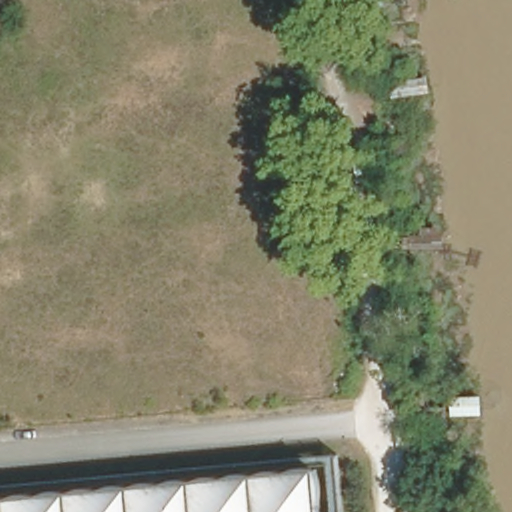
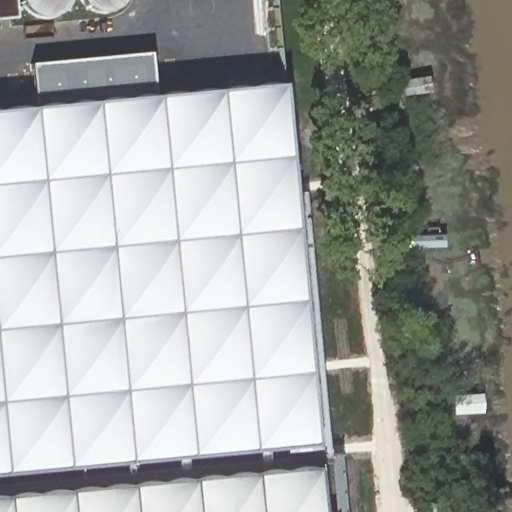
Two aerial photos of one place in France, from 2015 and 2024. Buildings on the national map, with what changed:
new [(0,19),(0,0),(16,0),(18,18),(0,19)]
unchanged [(423,84),(425,100),(389,104),(387,88),(423,84)]
new [(271,90),(312,429),(0,458),(0,113),(271,90)]
unchanged [(316,460),(320,512),(0,512),(0,493),(316,460)]

